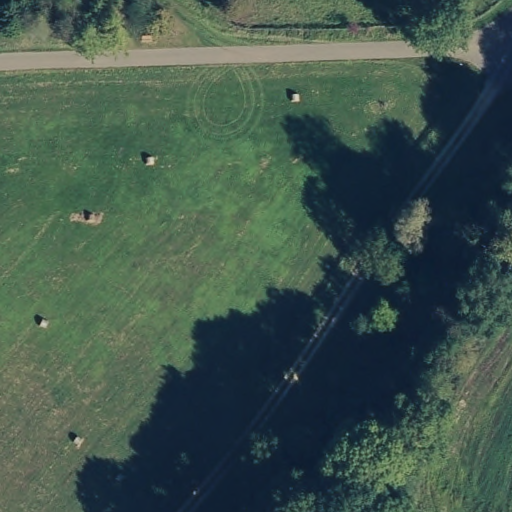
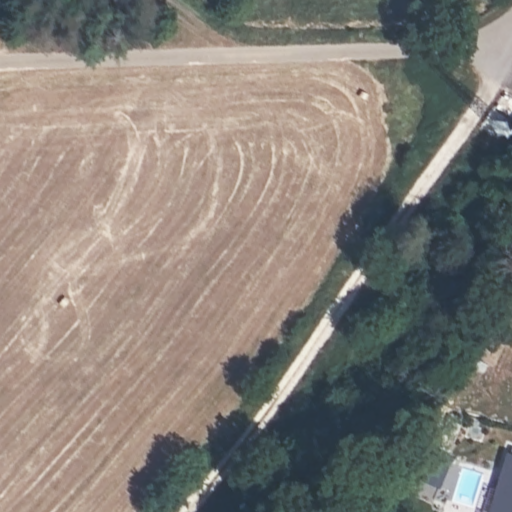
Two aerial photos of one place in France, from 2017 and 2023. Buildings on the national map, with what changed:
new [(486,512),(507,451),(512,452),(512,512),(486,512)]

